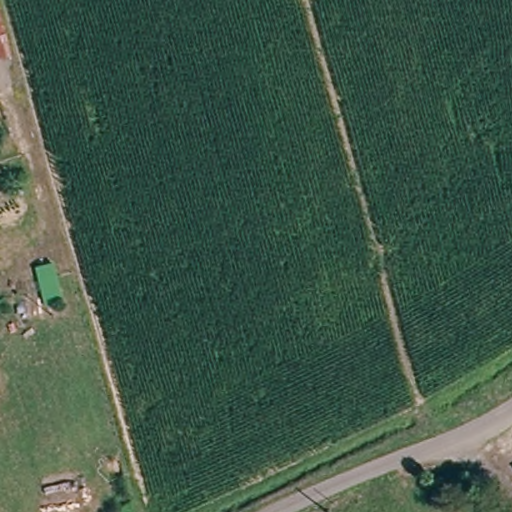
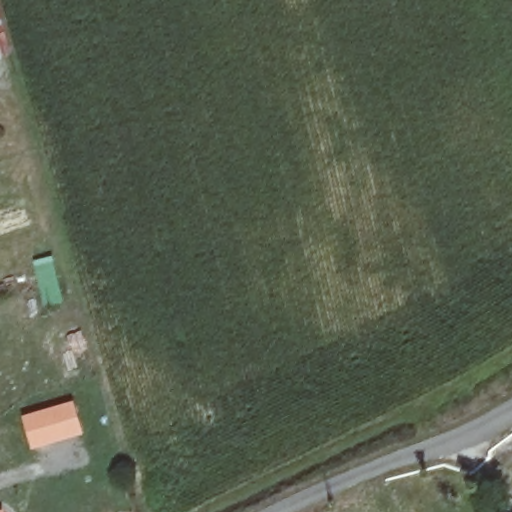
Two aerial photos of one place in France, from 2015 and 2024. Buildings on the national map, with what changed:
unchanged [(0,55),(0,23),(9,53),(0,55)]
new [(73,401),(84,435),(30,451),(20,416),(73,401)]
new [(4,512),(0,512),(0,510),(4,510),(4,512)]

